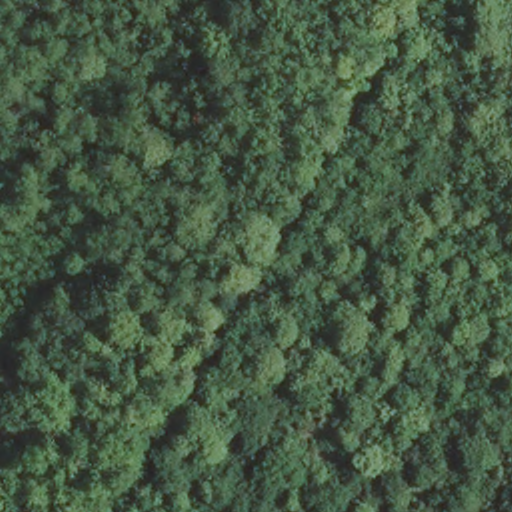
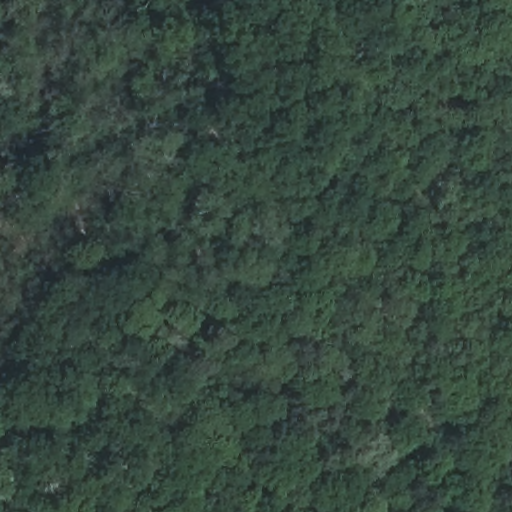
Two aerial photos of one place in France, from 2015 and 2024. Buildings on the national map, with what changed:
[]

